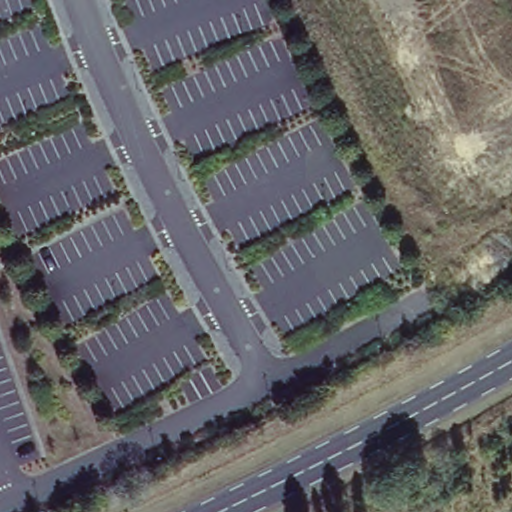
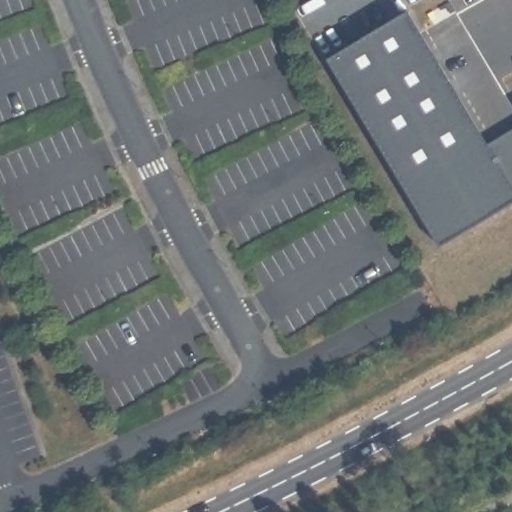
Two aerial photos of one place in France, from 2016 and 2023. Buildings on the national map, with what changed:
new [(327,61),(408,13),(487,146),(512,131),(512,204),(439,247),(327,61)]

